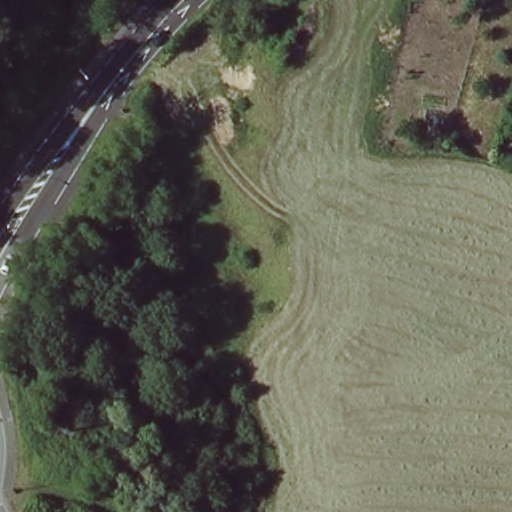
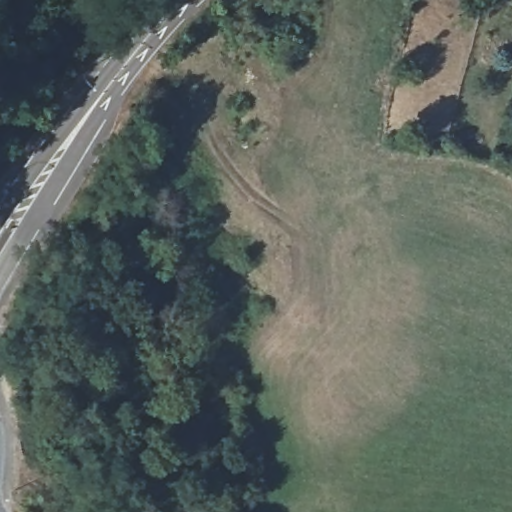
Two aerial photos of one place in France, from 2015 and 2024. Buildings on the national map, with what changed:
[]

